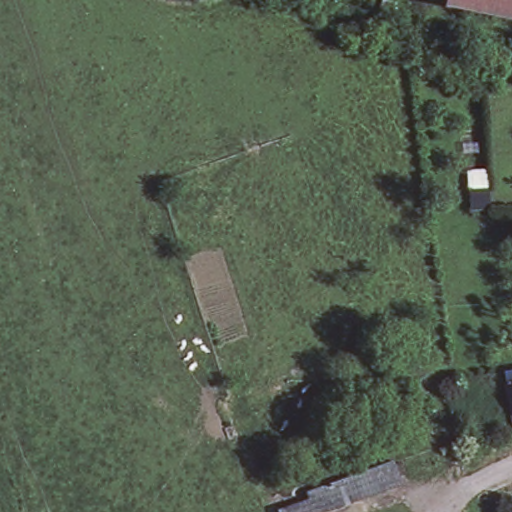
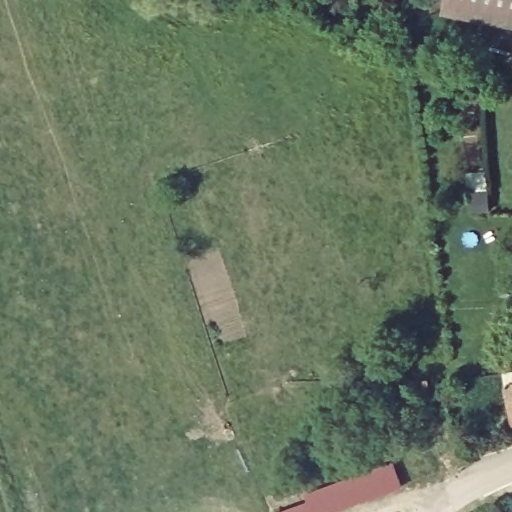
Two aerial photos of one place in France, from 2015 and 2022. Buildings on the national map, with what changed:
unchanged [(489,19),(445,10),(447,0),(512,0),(512,23),(489,19)]
unchanged [(502,383),(512,381),(512,422),(510,423),(502,383)]
unchanged [(306,507),(304,498),(393,468),(402,491),(339,512),(289,512),(306,507)]

